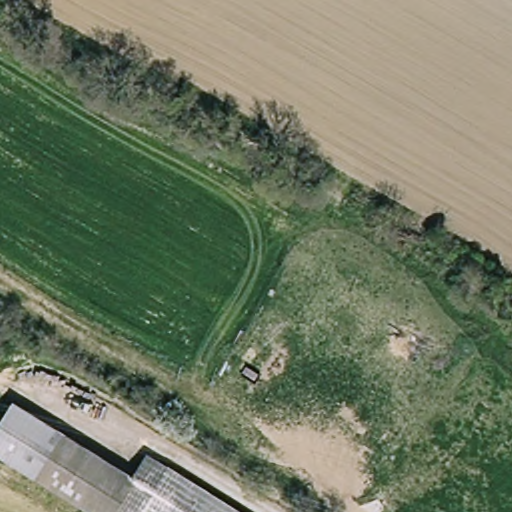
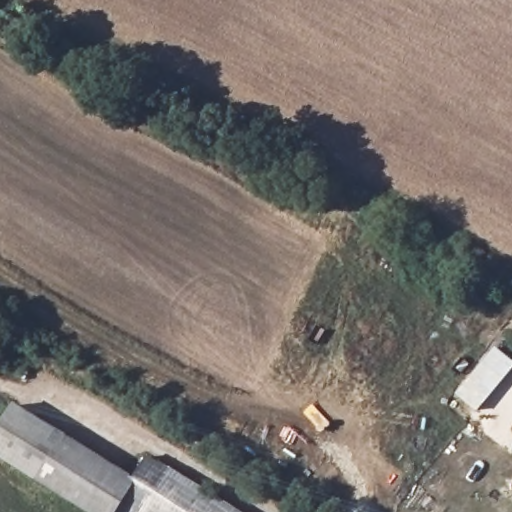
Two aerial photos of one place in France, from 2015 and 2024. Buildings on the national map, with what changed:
new [(496,346),(512,359),(512,371),(478,412),(457,394),(496,346)]
unchanged [(0,459),(0,426),(13,405),(61,436),(35,484),(0,459)]
unchanged [(84,512),(38,485),(65,440),(132,480),(114,512),(84,512)]
unchanged [(148,453),(238,512),(114,512),(132,480),(148,453)]

